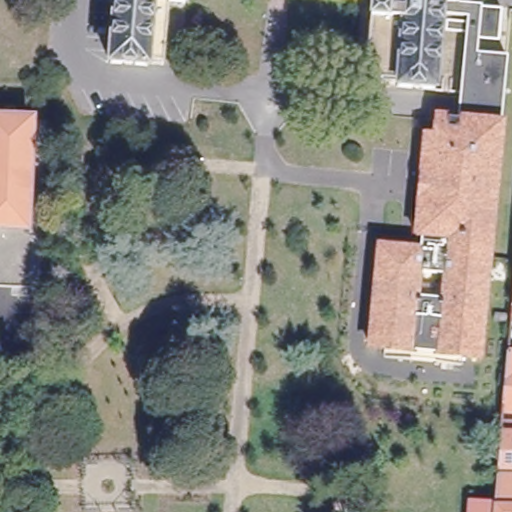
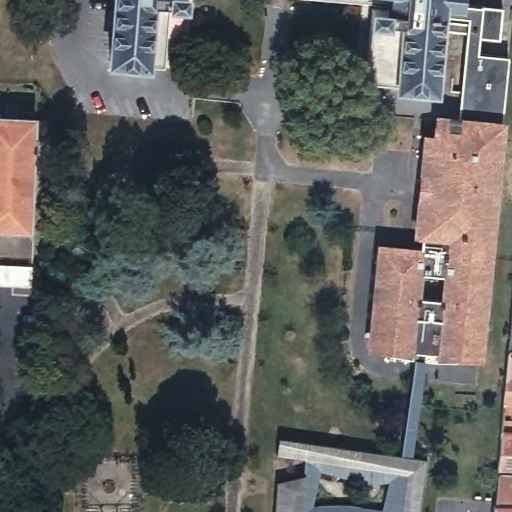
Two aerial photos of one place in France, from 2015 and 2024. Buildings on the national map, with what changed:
unchanged [(146,58),(146,60),(110,57),(115,0),(169,0),(161,59),(146,58)]
unchanged [(426,135),(435,136),(436,116),(457,117),(465,30),(440,28),(438,28),(432,86),(394,82),(395,78),(362,75),(369,3),(401,6),(401,0),(458,0),(457,2),(478,4),(500,5),(497,38),(476,36),(475,51),(506,54),(489,242),(483,241),(482,255),(488,255),(479,355),(453,353),(437,351),(438,342),(413,340),(412,349),(370,346),(378,260),(380,245),(420,249),(420,235),(416,235),(417,218),(420,193),(421,177),(425,135),(426,135)]
unchanged [(30,221),(0,220),(0,118),(34,120),(30,221)]
unchanged [(507,408),(508,390),(512,351),(512,409),(507,408)]
unchanged [(498,500),(505,429),(506,418),(512,419),(512,501),(498,500)]
new [(275,484),(301,477),(301,461),(273,458),(276,440),(338,448),(336,464),(346,465),(351,449),(425,459),(419,512),(273,512),(275,484)]
demolished [(476,498),(498,502),(498,512),(475,512),(476,498)]
unchanged [(512,501),(512,512),(498,512),(498,502),(498,500),(512,501)]

